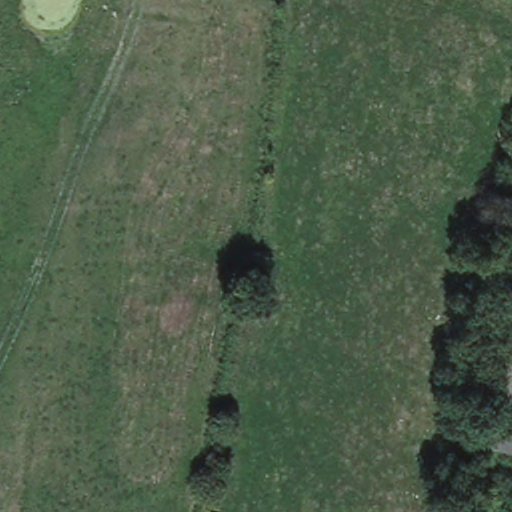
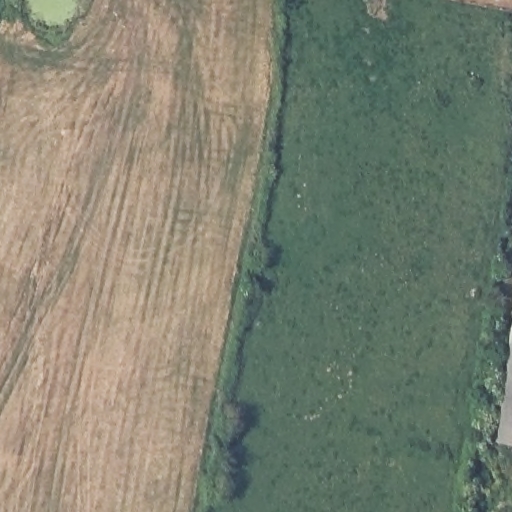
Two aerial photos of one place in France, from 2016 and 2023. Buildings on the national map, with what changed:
unchanged [(493,443),(512,317),(512,446),(493,443)]

